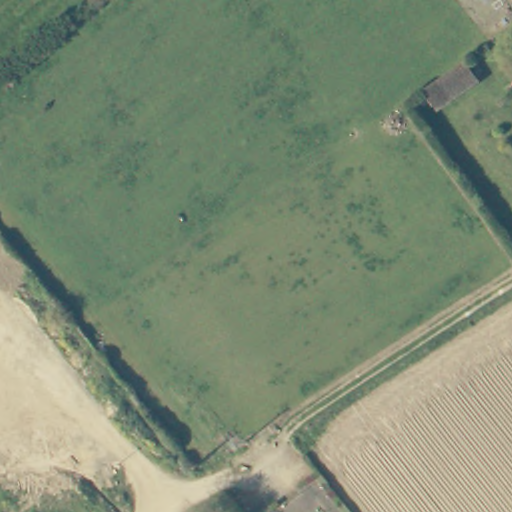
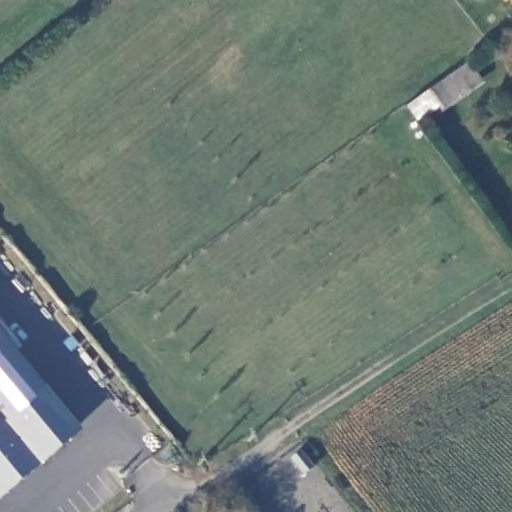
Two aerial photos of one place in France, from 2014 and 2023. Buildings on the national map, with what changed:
unchanged [(465,91),(435,115),(421,99),(468,59),(483,76),(465,91)]
new [(0,500),(0,337),(77,430),(0,500)]

